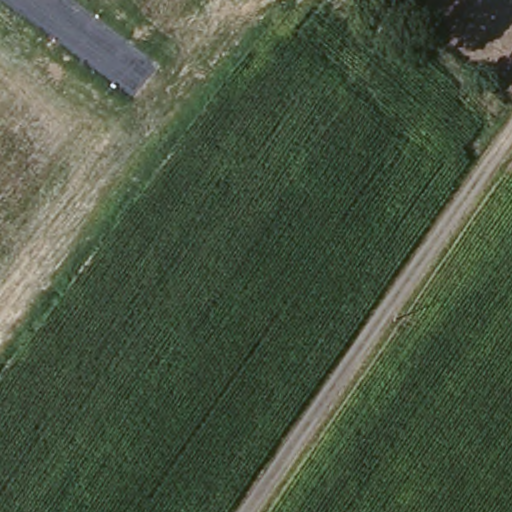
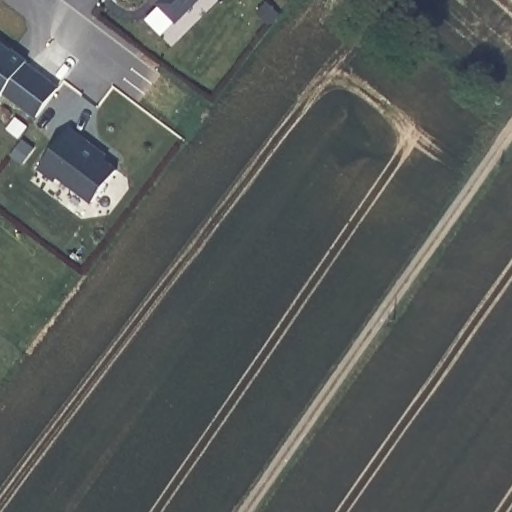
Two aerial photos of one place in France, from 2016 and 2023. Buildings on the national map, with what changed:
new [(191,0),(173,17),(157,0),(191,0)]
new [(2,89),(0,91),(0,42),(8,49),(9,48),(24,59),(22,61),(55,86),(35,113),(2,89)]
new [(37,165),(67,126),(96,148),(93,152),(114,168),(87,203),(37,165)]

